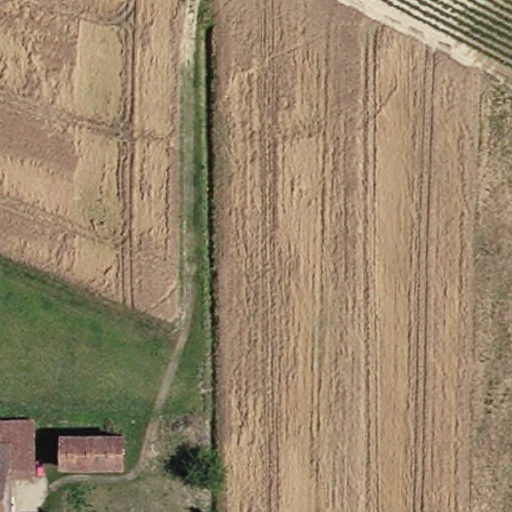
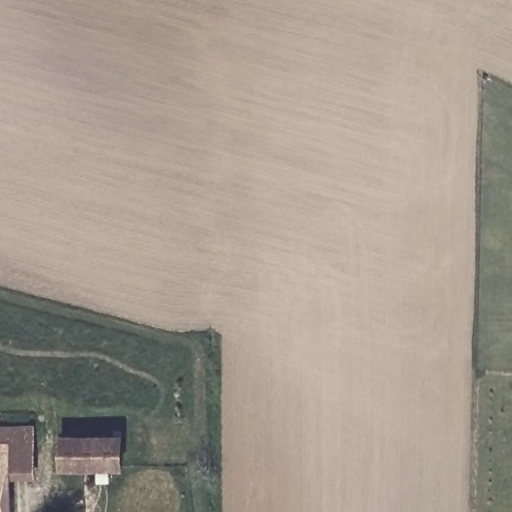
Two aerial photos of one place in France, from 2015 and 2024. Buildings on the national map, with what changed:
unchanged [(33,450),(31,450),(31,470),(10,471),(10,512),(0,512),(0,422),(33,422),(33,450)]
unchanged [(116,468),(74,468),(56,468),(56,438),(73,438),(116,440),(116,468)]

